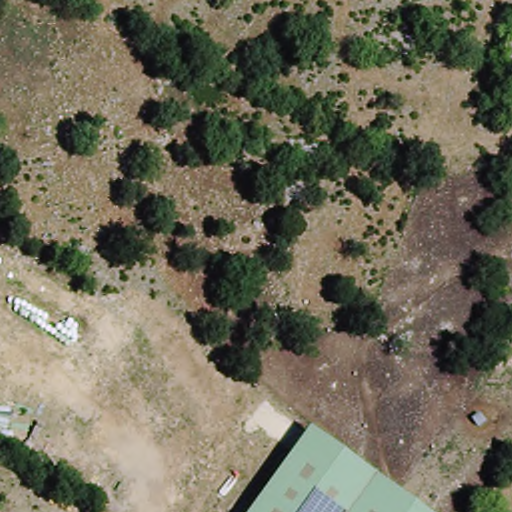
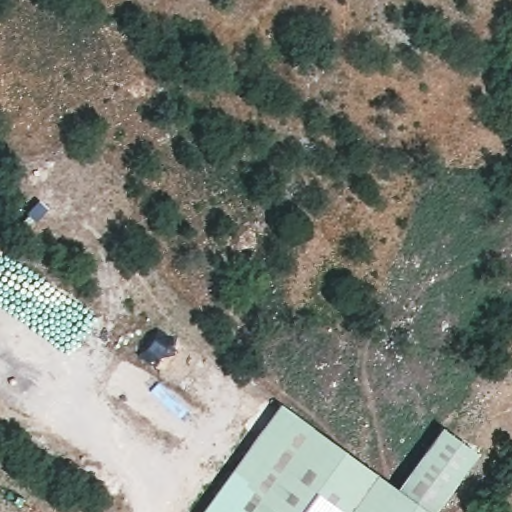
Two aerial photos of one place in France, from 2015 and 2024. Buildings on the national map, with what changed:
new [(312,427),(249,512),(199,512),(278,403),(312,427)]
unchanged [(314,424),(432,512),(249,512),(314,424)]
new [(477,454),(434,512),(432,512),(397,486),(440,427),(477,454)]

